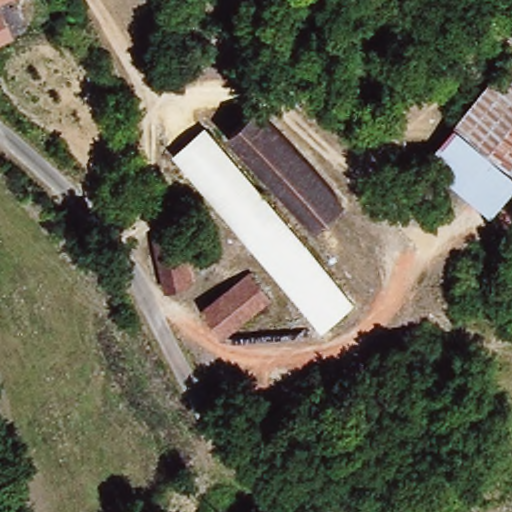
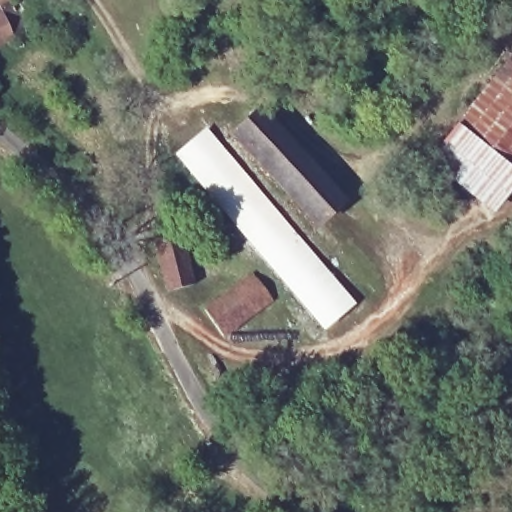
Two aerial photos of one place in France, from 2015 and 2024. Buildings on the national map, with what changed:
unchanged [(25,31),(0,43),(0,0),(11,0),(25,31)]
unchanged [(433,170),(503,50),(511,35),(512,35),(512,191),(501,210),(433,170)]
unchanged [(315,121),(281,80),(297,65),(332,106),(315,121)]
unchanged [(255,111),(341,201),(315,226),(230,137),(255,111)]
unchanged [(169,170),(200,139),(353,294),(321,325),(169,170)]
unchanged [(152,245),(177,239),(188,283),(163,292),(152,245)]
unchanged [(250,277),(266,303),(216,335),(200,310),(239,285),(250,277)]

